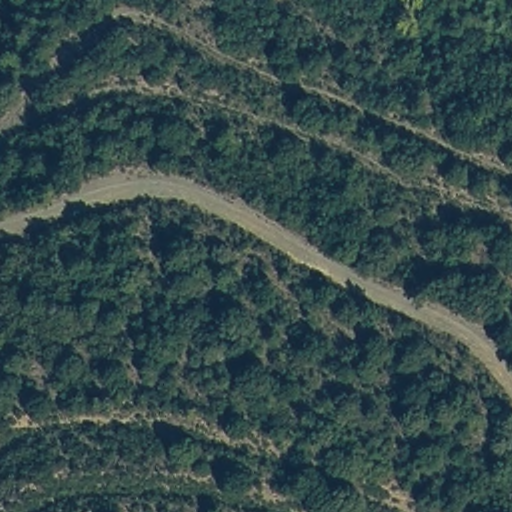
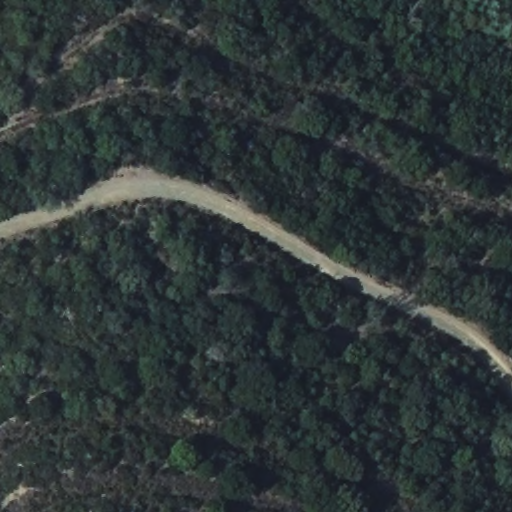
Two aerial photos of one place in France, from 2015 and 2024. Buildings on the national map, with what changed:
[]

